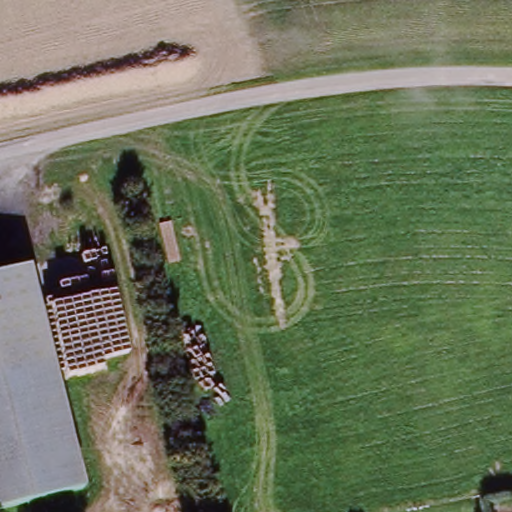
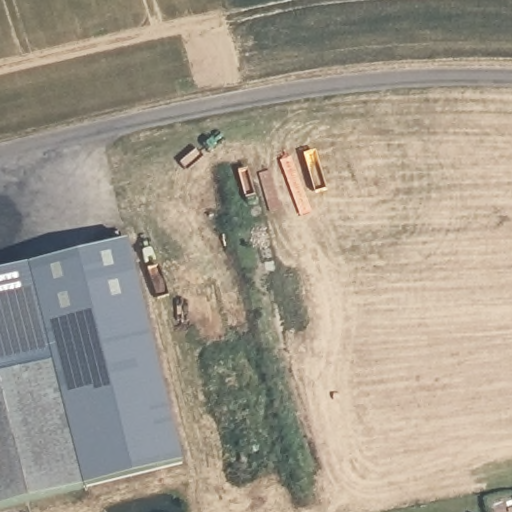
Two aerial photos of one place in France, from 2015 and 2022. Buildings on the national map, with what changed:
new [(31,265),(128,241),(184,463),(80,492),(51,365),(31,269),(31,265)]
unchanged [(0,276),(31,269),(51,365),(0,376),(0,276)]
unchanged [(0,510),(0,376),(51,365),(80,492),(0,510)]

